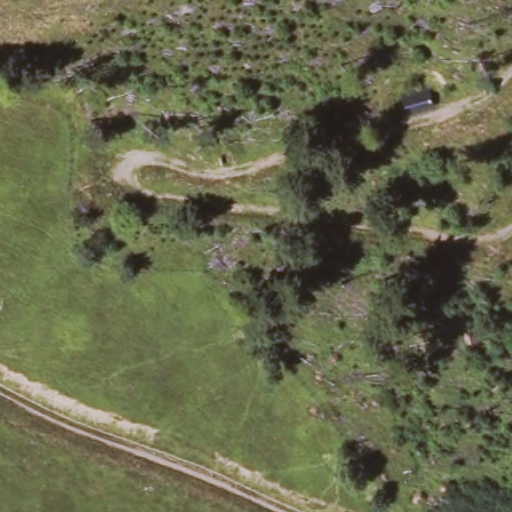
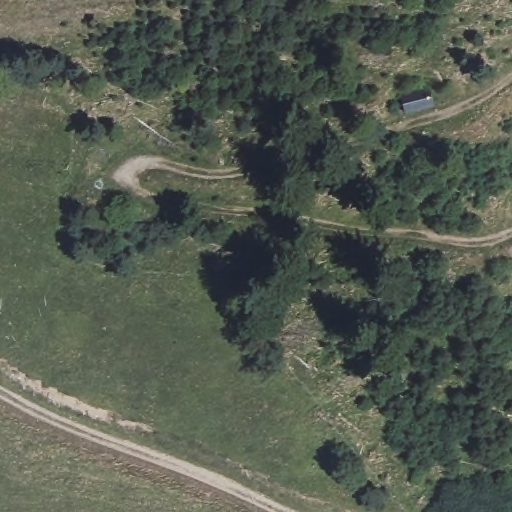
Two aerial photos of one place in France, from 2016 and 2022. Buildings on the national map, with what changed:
unchanged [(402,116),(396,91),(425,81),(432,104),(402,116)]

